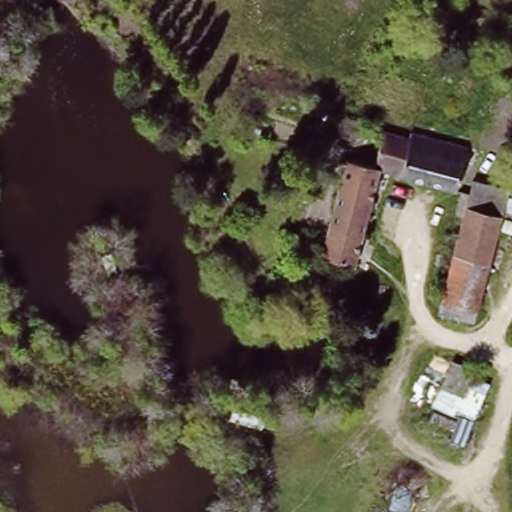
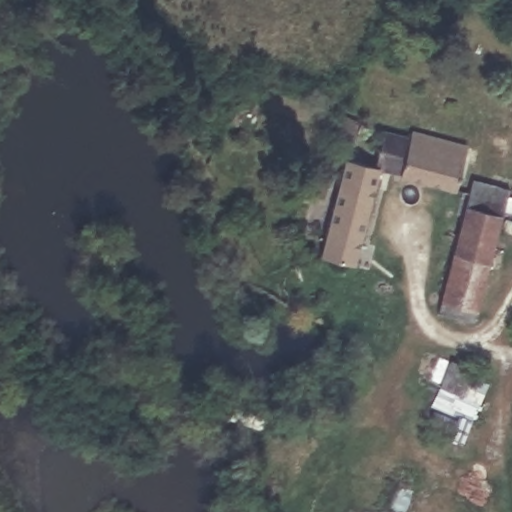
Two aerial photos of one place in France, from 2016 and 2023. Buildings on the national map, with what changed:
unchanged [(465,192),(378,173),(356,265),(318,257),(340,156),(373,163),(382,126),(467,146),(460,175),(512,188),(512,233),(496,229),(471,326),(432,315),(465,192)]
unchanged [(476,369),(473,380),(488,386),(474,421),(471,419),(462,448),(449,443),(452,435),(427,424),(433,408),(427,405),(434,387),(439,390),(451,360),(476,369)]

